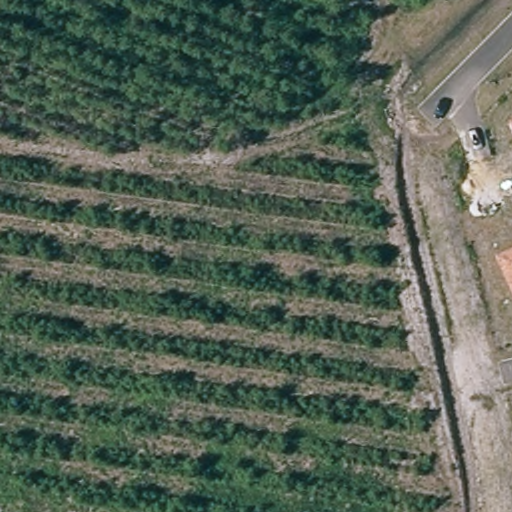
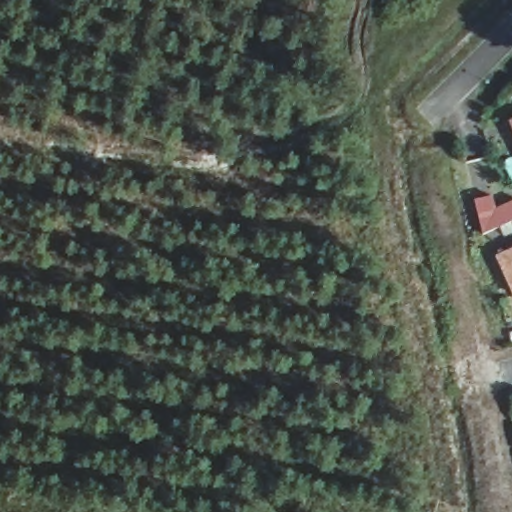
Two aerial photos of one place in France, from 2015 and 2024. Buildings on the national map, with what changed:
unchanged [(512,119),(512,127),(509,120),(512,119)]
new [(489,207),(512,196),(512,215),(478,232),(470,197),(487,193),(489,207)]
unchanged [(512,247),(512,293),(495,255),(512,247)]

